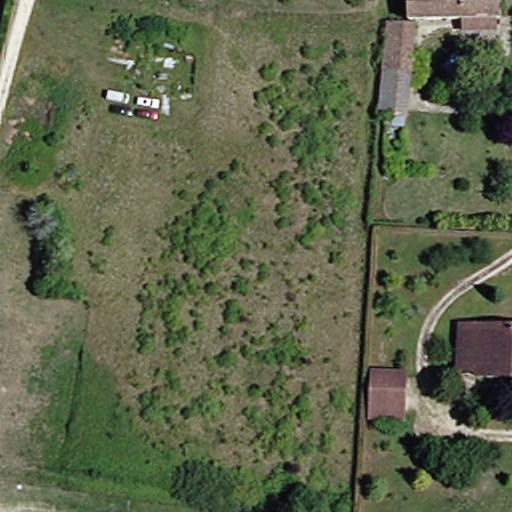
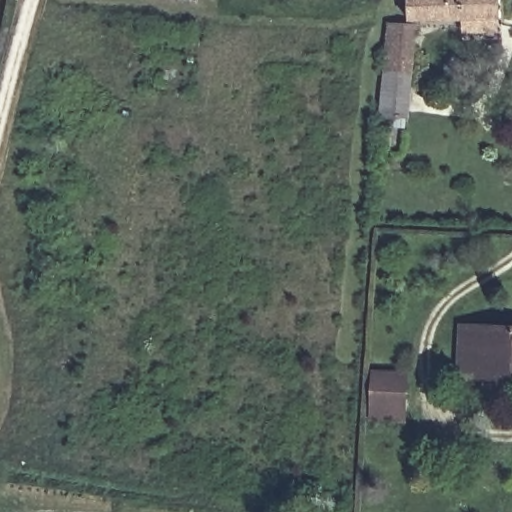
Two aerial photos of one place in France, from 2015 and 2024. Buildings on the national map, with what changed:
unchanged [(397,17),(396,0),(487,0),(488,12),(397,17)]
unchanged [(403,27),(399,70),(370,69),(374,26),(403,27)]
unchanged [(399,70),(394,117),(366,116),(370,69),(399,70)]
unchanged [(444,323),(512,325),(512,372),(509,372),(481,371),(442,370),(444,323)]
unchanged [(394,419),(357,418),(360,368),(395,368),(394,419)]

